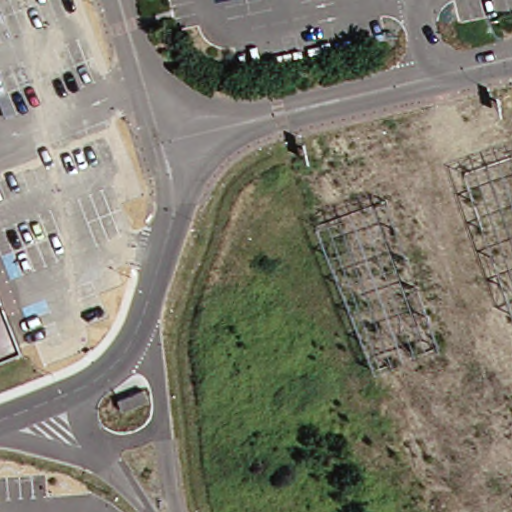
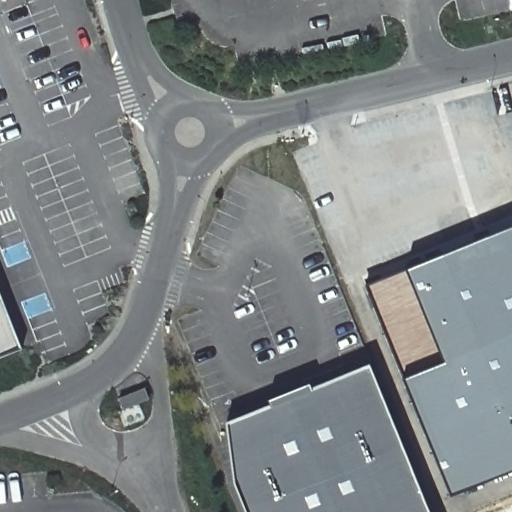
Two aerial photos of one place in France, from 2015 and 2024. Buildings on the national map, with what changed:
demolished [(511,312),(462,169),(512,151),(512,312),(511,312)]
new [(453,494),(407,379),(369,283),(408,267),(512,225),(512,470),(453,494)]
unchanged [(0,355),(0,309),(15,349),(0,355)]
new [(247,512),(235,483),(228,422),(372,364),(431,512),(247,512)]
unchanged [(145,389),(149,399),(124,409),(119,399),(145,389)]

